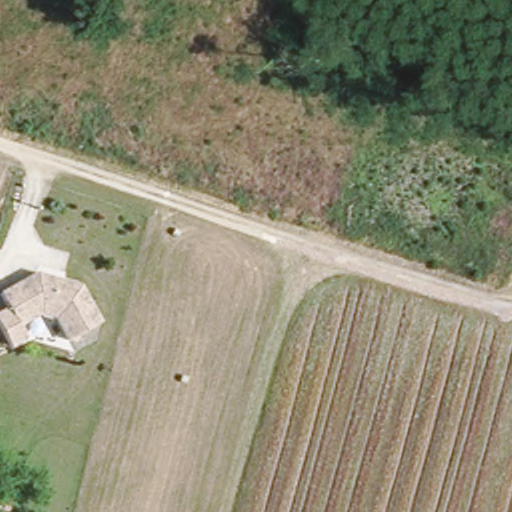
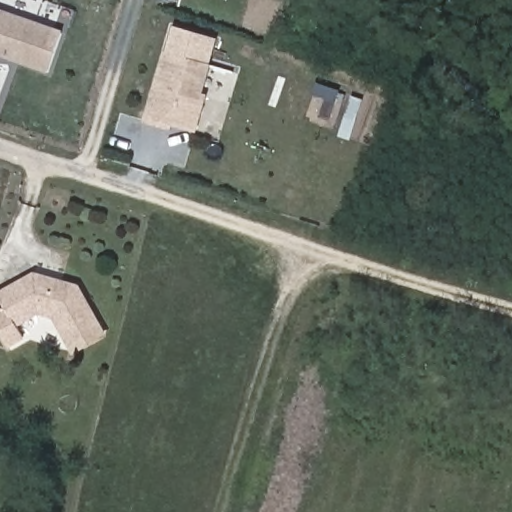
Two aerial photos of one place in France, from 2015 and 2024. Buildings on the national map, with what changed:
new [(63,31),(48,74),(0,57),(0,9),(63,31)]
new [(210,65),(202,94),(207,95),(197,132),(179,126),(174,131),(144,124),(163,51),(210,65)]
unchanged [(77,285),(96,320),(65,337),(52,313),(38,310),(16,322),(23,335),(8,343),(0,330),(0,310),(6,307),(0,296),(0,291),(34,272),(77,285)]

